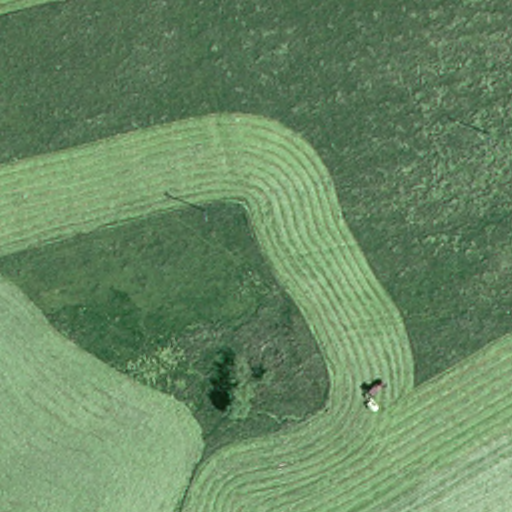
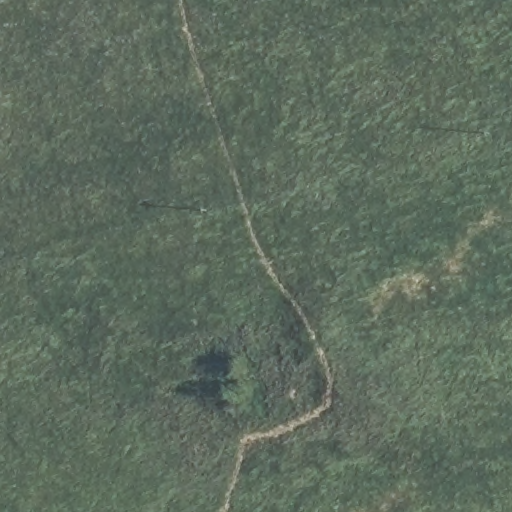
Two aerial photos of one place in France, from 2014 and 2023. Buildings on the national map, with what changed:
[]

